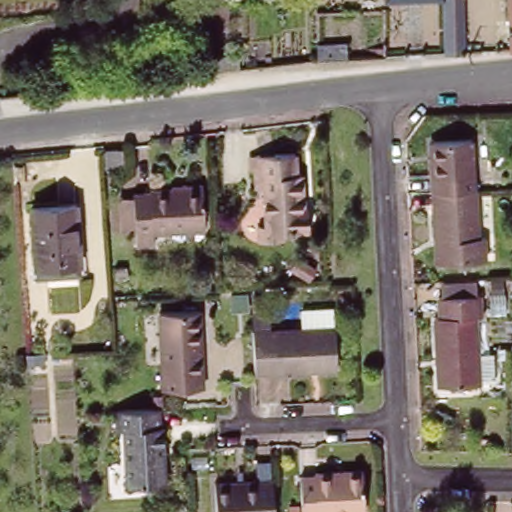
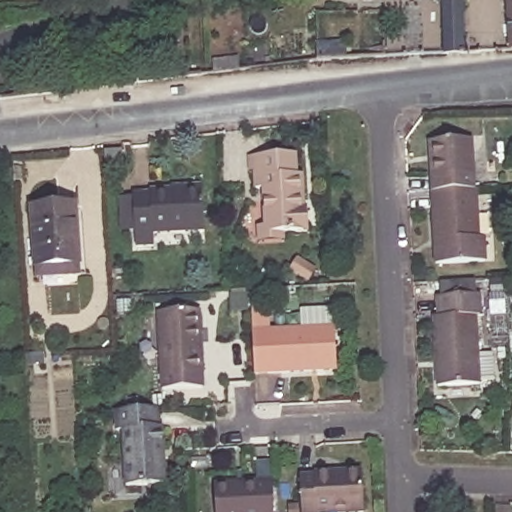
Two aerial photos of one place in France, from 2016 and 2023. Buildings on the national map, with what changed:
unchanged [(467,51),(444,51),(442,0),(465,0),(467,51)]
unchanged [(506,0),(512,0),(512,51),(509,51),(506,0)]
unchanged [(345,60),(315,61),(315,41),(344,41),(345,60)]
unchanged [(437,192),(435,141),(477,139),(480,190),(437,192)]
unchanged [(310,234),(259,242),(252,157),(296,153),(310,234)]
unchanged [(120,207),(132,206),(132,201),(149,199),(149,197),(169,196),(169,191),(180,191),(199,190),(202,235),(135,240),(135,235),(122,236),(120,207)]
unchanged [(440,241),(437,192),(480,190),(482,238),(487,238),(489,262),(447,264),(441,264),(440,241)]
unchanged [(75,204),(79,263),(66,264),(35,267),(30,208),(61,205),(75,204)]
unchanged [(482,315),(477,316),(480,359),(492,358),(493,381),(480,383),(480,386),(439,388),(435,317),(440,317),(439,297),(441,297),(441,282),(476,281),(476,295),(480,295),(482,315)]
unchanged [(200,315),(200,393),(159,393),(159,315),(200,315)]
unchanged [(254,339),(336,332),(339,373),(257,381),(254,339)]
unchanged [(162,488),(124,489),(123,433),(117,432),(117,412),(160,412),(160,430),(162,430),(162,488)]
unchanged [(365,512),(303,512),(302,477),(317,477),(316,473),(363,471),(365,512)]
unchanged [(269,482),(270,512),(214,512),(213,485),(269,482)]

